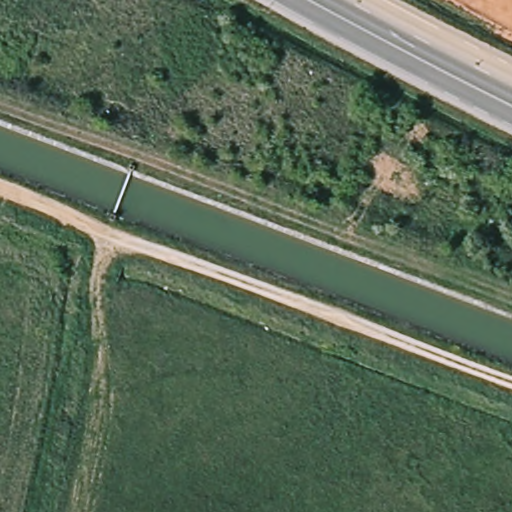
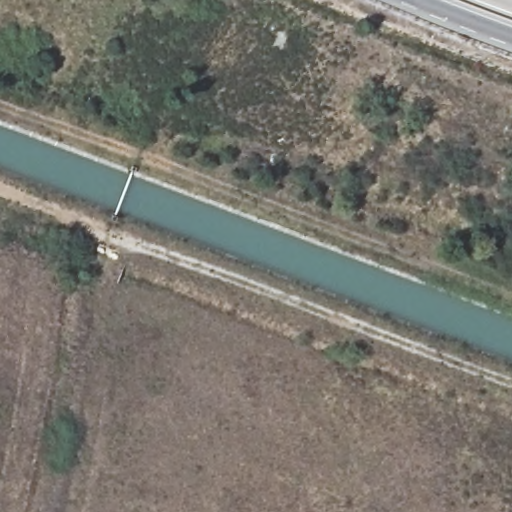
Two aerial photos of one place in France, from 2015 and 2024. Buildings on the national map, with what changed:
[]

